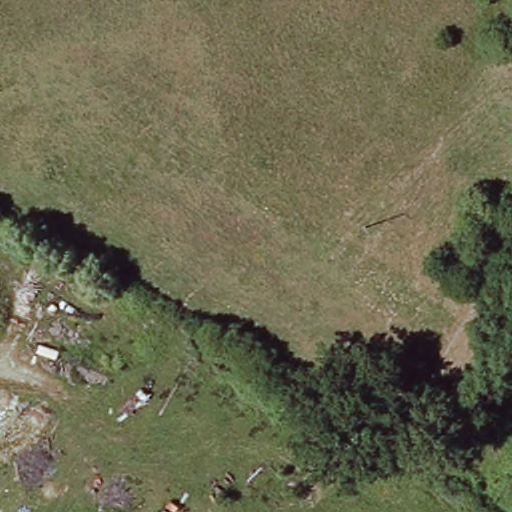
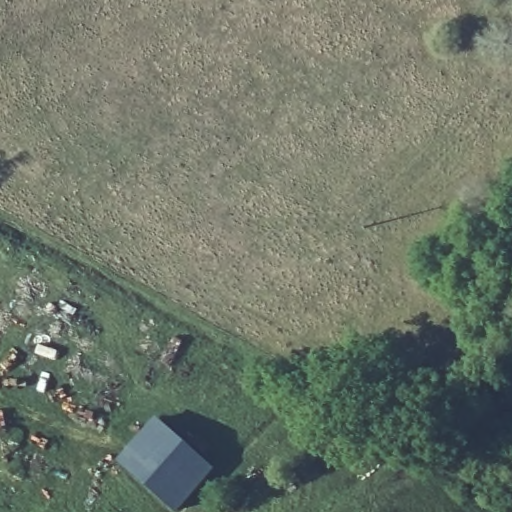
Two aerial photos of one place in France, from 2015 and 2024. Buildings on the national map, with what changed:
new [(117,462),(156,418),(215,471),(178,512),(175,512),(117,462)]

